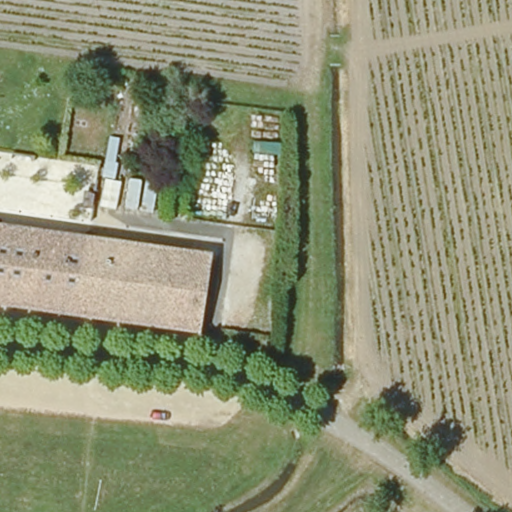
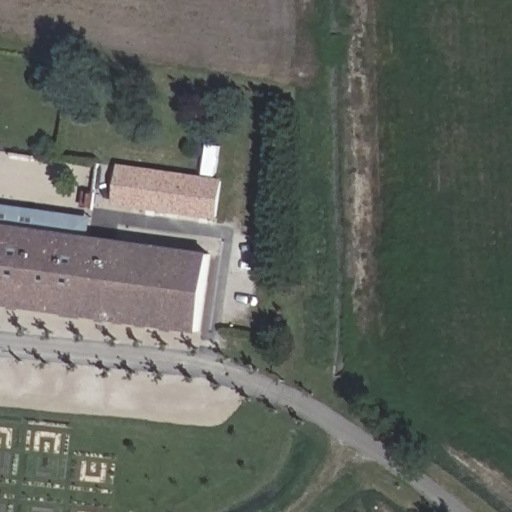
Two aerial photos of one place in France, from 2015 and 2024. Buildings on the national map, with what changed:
demolished [(103,179),(99,177),(104,163),(114,167),(113,181),(119,183),(113,213),(99,207),(103,179)]
new [(224,180),(218,220),(112,205),(118,164),(224,180)]
unchanged [(0,265),(0,232),(91,241),(87,277),(0,265)]
unchanged [(200,290),(197,330),(0,310),(0,265),(87,277),(91,241),(183,251),(203,254),(200,290)]

